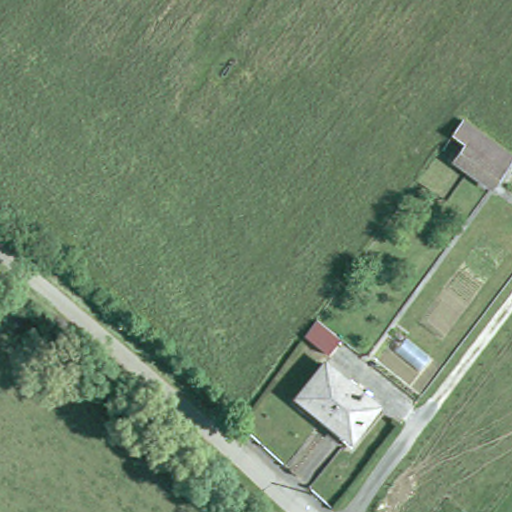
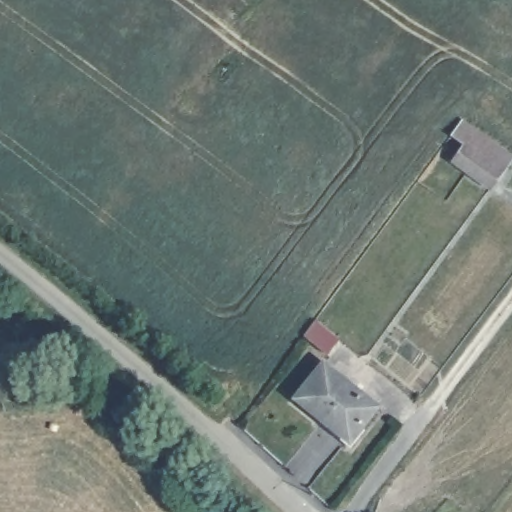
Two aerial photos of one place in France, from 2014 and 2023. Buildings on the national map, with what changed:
unchanged [(447,140),(463,122),(512,159),(512,166),(491,192),(448,166),(463,148),(447,140)]
unchanged [(120,285),(132,296),(124,307),(111,296),(120,285)]
unchanged [(355,435),(344,426),(303,396),(329,363),(370,393),(381,402),(355,435)]

